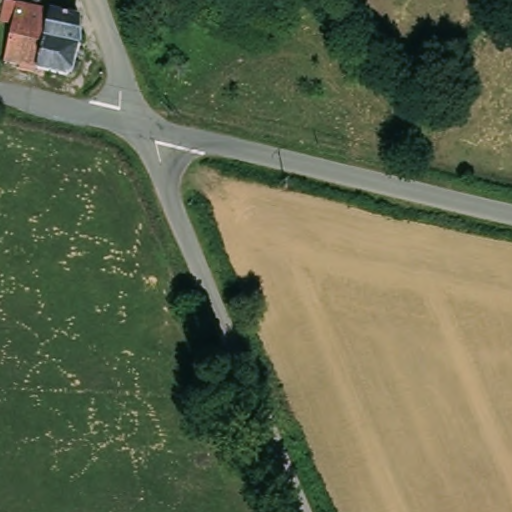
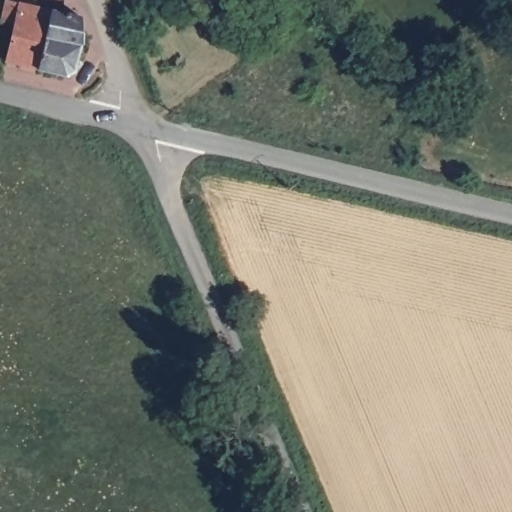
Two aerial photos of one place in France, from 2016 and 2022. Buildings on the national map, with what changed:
unchanged [(79,16),(80,44),(73,71),(65,75),(5,62),(18,2),(79,16)]

